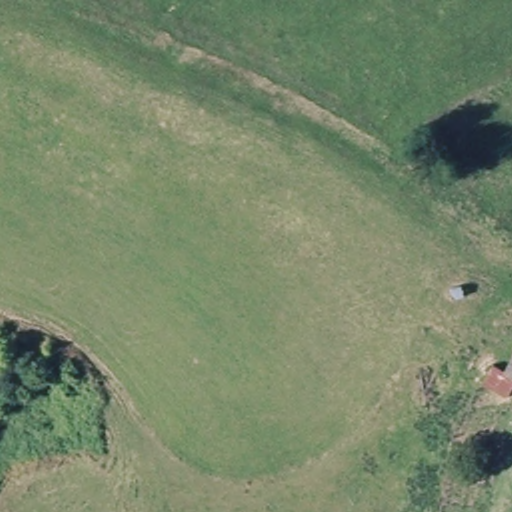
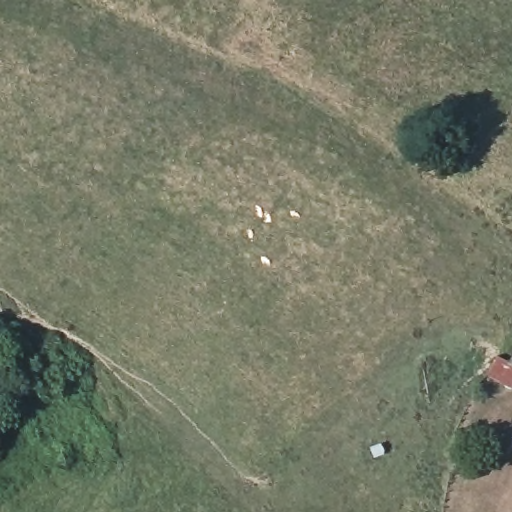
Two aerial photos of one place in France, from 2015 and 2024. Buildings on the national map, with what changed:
unchanged [(501,377),(512,355),(512,381),(501,377)]

